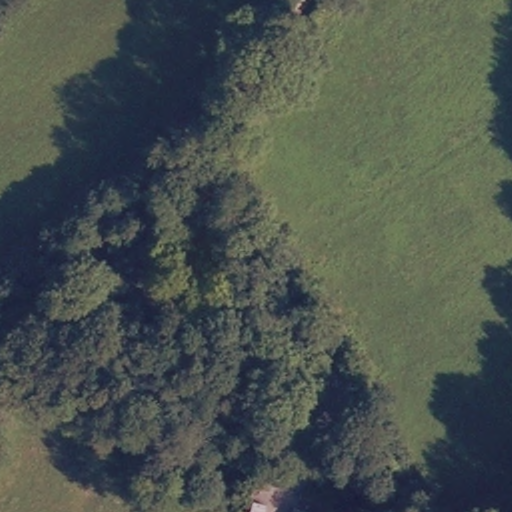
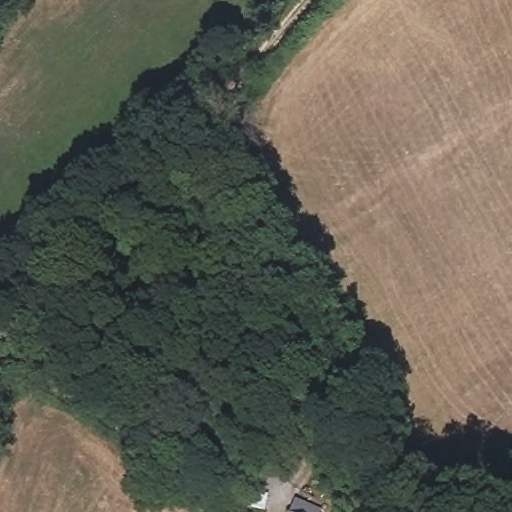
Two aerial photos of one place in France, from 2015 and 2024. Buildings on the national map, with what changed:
unchanged [(311,512),(297,512),(300,506),(311,512)]

